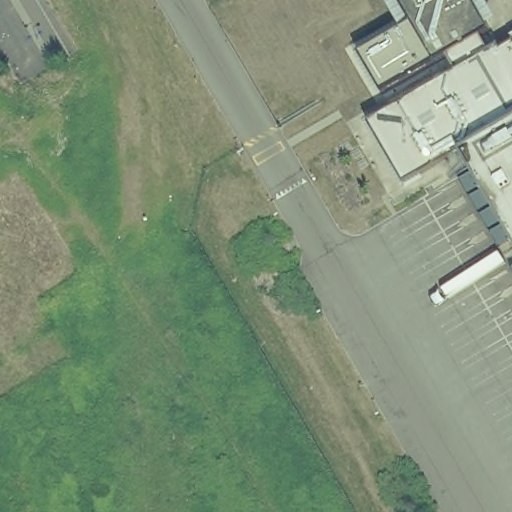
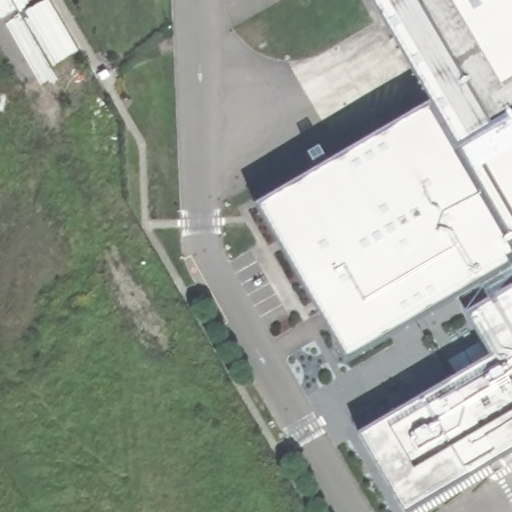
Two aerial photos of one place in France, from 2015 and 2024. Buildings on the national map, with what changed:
new [(402,54),(472,0),(512,0),(512,454),(413,512),(404,512),(358,433),(490,356),(457,301),(348,364),(255,206),(430,102),(402,54)]
demolished [(403,186),(367,116),(425,83),(378,0),(488,0),(500,21),(478,36),(489,54),(512,40),(512,232),(467,154),(403,186)]
new [(389,32),(370,0),(431,0),(389,32)]
new [(402,54),(389,32),(431,0),(472,0),(402,54)]

